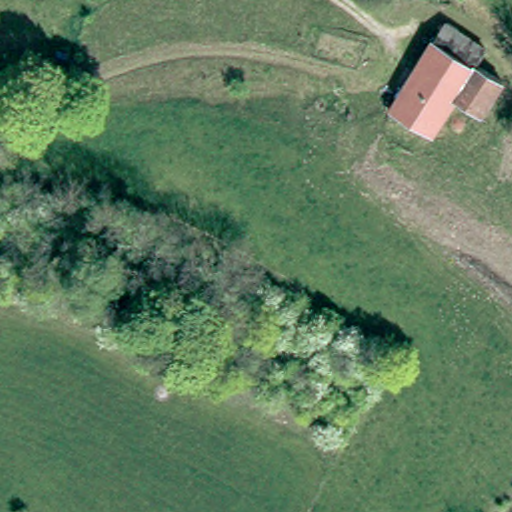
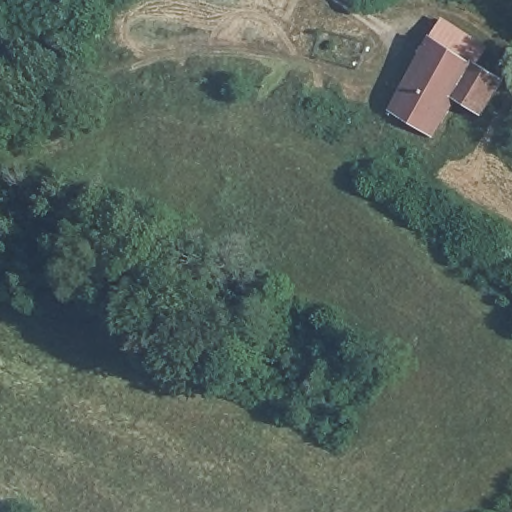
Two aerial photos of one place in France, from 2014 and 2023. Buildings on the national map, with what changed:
unchanged [(92,9),(77,0),(97,0),(92,9)]
unchanged [(388,109),(444,20),(491,46),(479,64),(502,77),(480,113),(454,97),(429,134),(388,109)]

